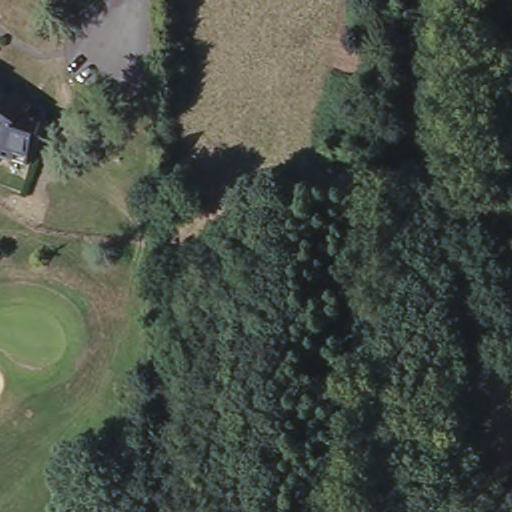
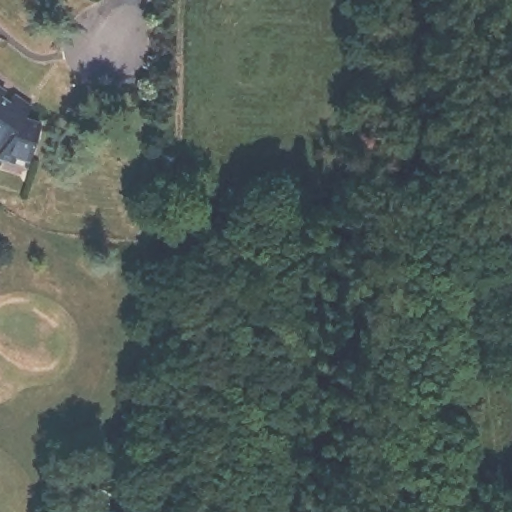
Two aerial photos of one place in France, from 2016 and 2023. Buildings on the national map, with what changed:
unchanged [(8,93),(23,104),(18,118),(31,125),(14,167),(0,161),(0,99),(2,100),(8,93)]

